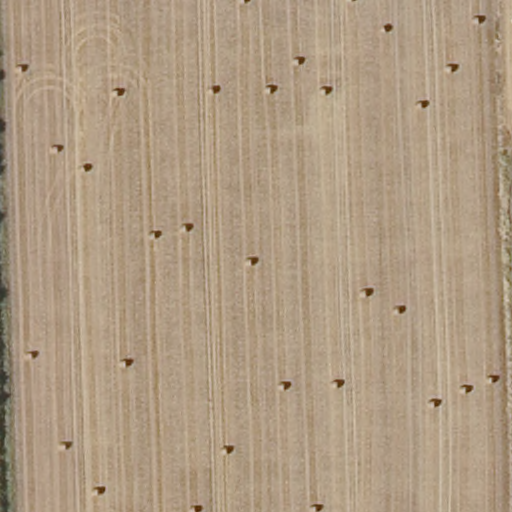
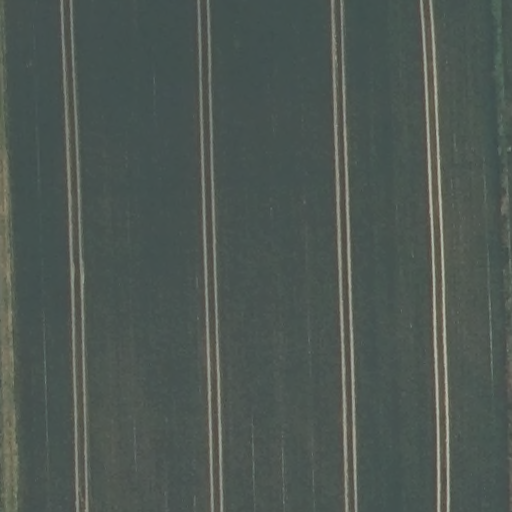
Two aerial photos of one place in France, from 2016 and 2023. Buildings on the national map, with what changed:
[]

